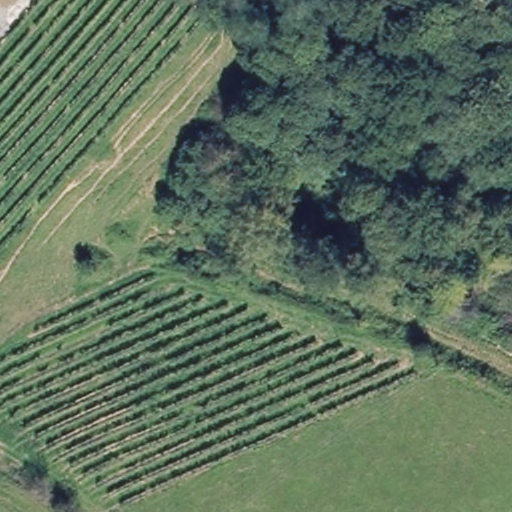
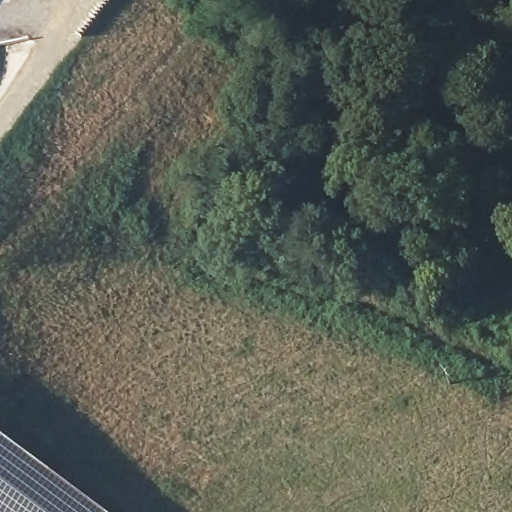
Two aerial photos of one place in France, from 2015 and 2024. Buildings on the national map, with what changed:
new [(100,512),(0,512),(0,438),(100,512)]

